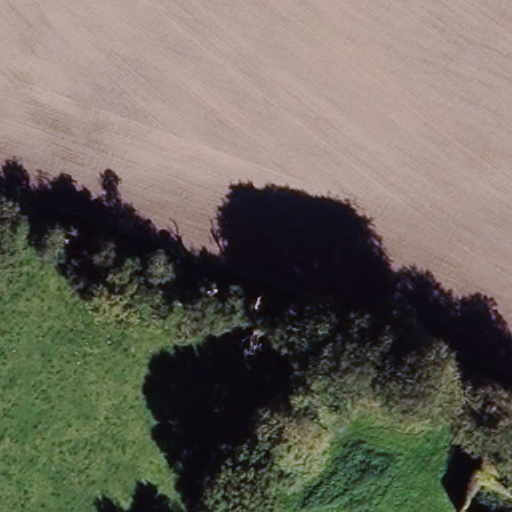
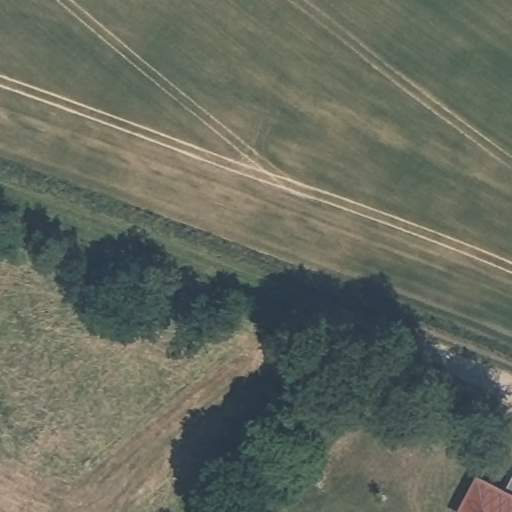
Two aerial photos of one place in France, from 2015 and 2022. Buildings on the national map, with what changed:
new [(512,512),(457,512),(478,473),(512,491),(512,512)]

